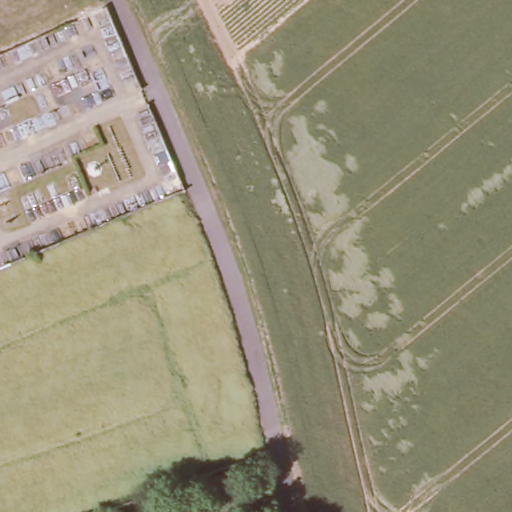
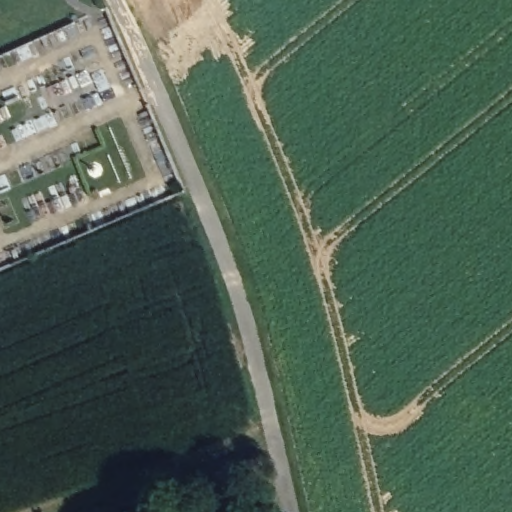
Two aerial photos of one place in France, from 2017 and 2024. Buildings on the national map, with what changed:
unchanged [(137,501),(144,498),(148,510),(144,512),(129,512),(127,504),(137,501)]

